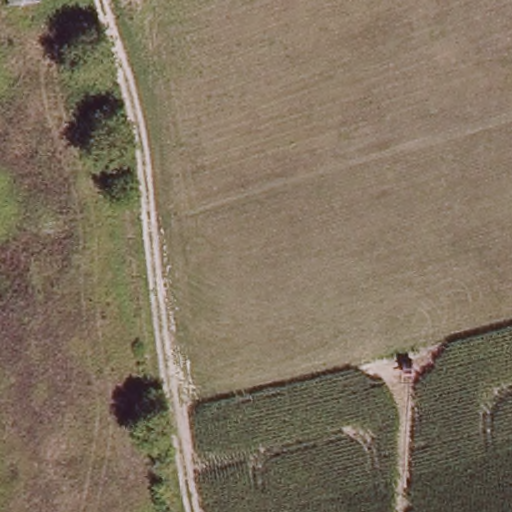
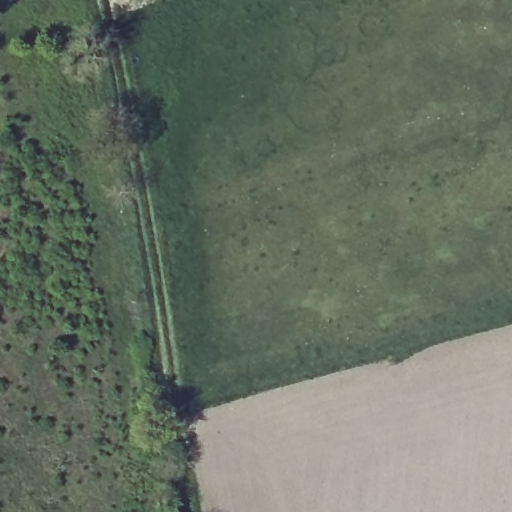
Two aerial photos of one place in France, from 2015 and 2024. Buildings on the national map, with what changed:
unchanged [(38,0),(8,6),(7,0),(38,0)]

